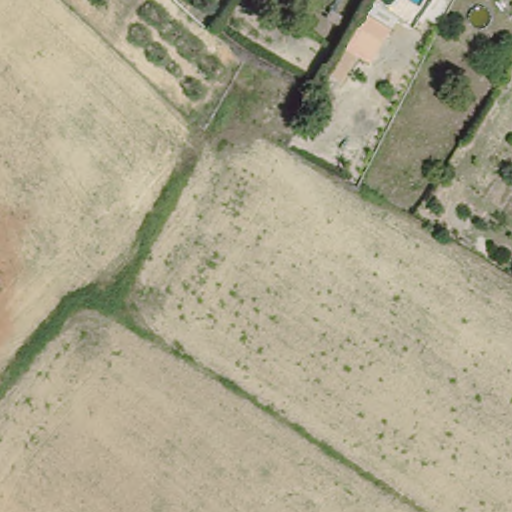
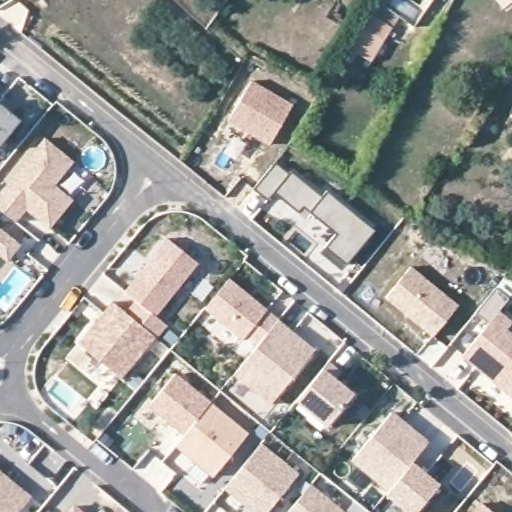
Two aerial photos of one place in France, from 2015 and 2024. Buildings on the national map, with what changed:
new [(379,5),(400,18),(372,64),(350,49),(379,5)]
new [(265,147),(223,123),(245,84),(287,107),(265,147)]
new [(0,139),(0,105),(17,119),(0,139)]
new [(66,199),(43,227),(20,208),(10,221),(0,213),(0,185),(38,137),(66,160),(48,184),(66,199)]
new [(317,201),(299,222),(268,196),(261,204),(248,192),(273,164),(317,201)]
new [(369,235),(340,270),(318,252),(330,239),(304,217),(322,196),(369,235)]
new [(1,259),(0,258),(0,232),(14,244),(1,259)]
new [(149,317),(161,325),(152,339),(121,315),(128,304),(116,296),(153,238),(186,260),(149,317)]
new [(458,305),(432,336),(386,297),(412,266),(458,305)]
new [(273,323),(252,348),(241,338),(238,342),(200,311),(224,282),(273,323)]
new [(512,341),(512,404),(457,359),(483,327),(470,316),(490,291),(504,302),(493,315),(507,326),(502,332),(512,341)]
new [(120,380),(75,347),(106,304),(121,315),(152,339),(120,380)]
new [(265,407),(228,377),(273,323),(310,353),(265,407)]
new [(322,428),(291,403),(322,365),(336,377),(330,383),(347,397),(322,428)]
new [(205,405),(178,436),(144,407),(170,376),(205,405)]
new [(206,480),(168,448),(205,406),(242,437),(206,480)]
new [(422,446),(383,492),(347,462),(386,415),(422,446)]
new [(264,512),(243,512),(218,491),(255,447),(292,478),(264,512)]
new [(413,512),(399,512),(380,497),(406,465),(433,487),(413,512)]
new [(11,512),(0,512),(0,478),(23,497),(11,512)]
new [(333,512),(285,512),(305,488),(333,512)]
new [(68,505),(76,512),(62,512),(68,505)]
new [(475,506),(483,512),(470,512),(475,506)]

